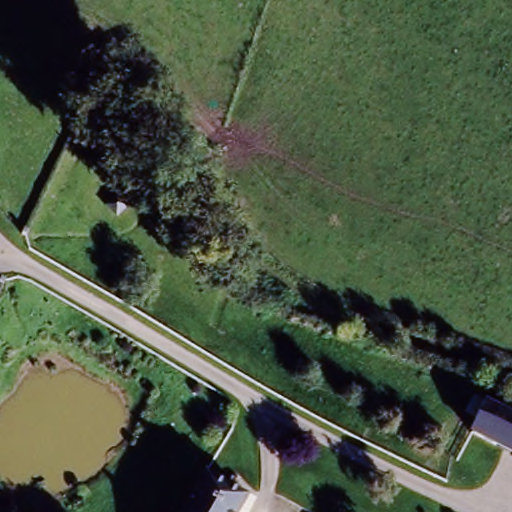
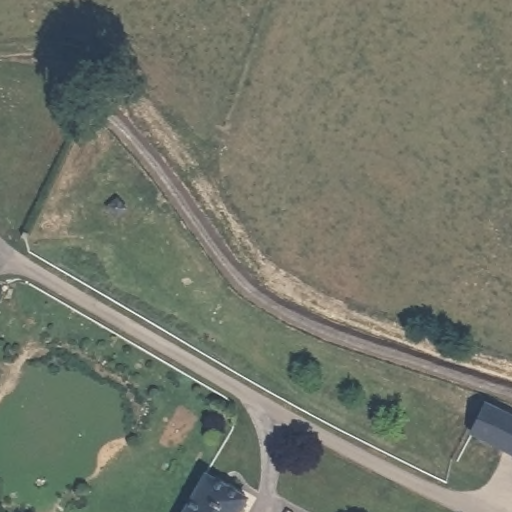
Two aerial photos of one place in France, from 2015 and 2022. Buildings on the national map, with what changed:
unchanged [(480,407),(512,417),(512,456),(469,443),(480,407)]
unchanged [(245,502),(240,512),(189,512),(206,481),(245,502)]

